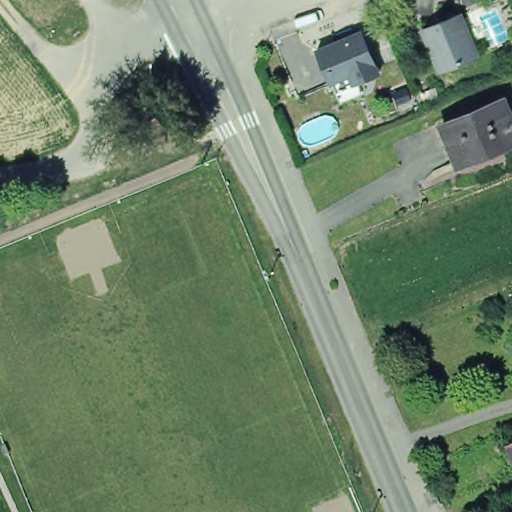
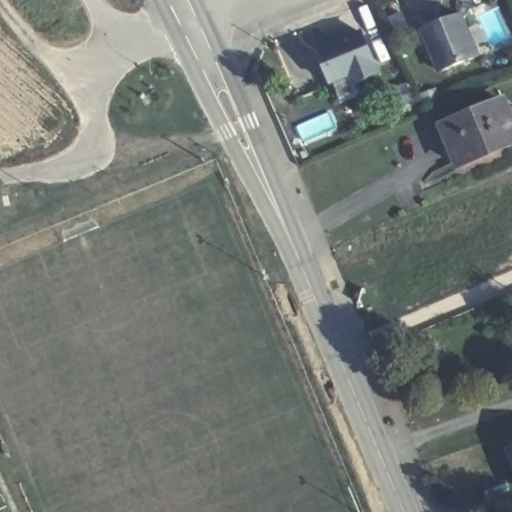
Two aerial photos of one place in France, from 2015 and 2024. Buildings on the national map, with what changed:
unchanged [(459,12),(475,54),(469,57),(439,69),(422,27),(452,15),(459,12)]
unchanged [(332,81),(319,47),(365,30),(381,71),(359,79),(355,81),(352,73),(332,81)]
unchanged [(437,130),(495,105),(512,144),(454,170),(437,130)]
unchanged [(503,451),(512,448),(512,477),(503,451)]

